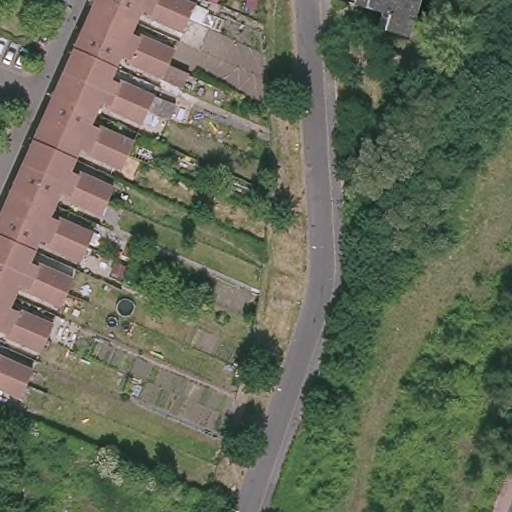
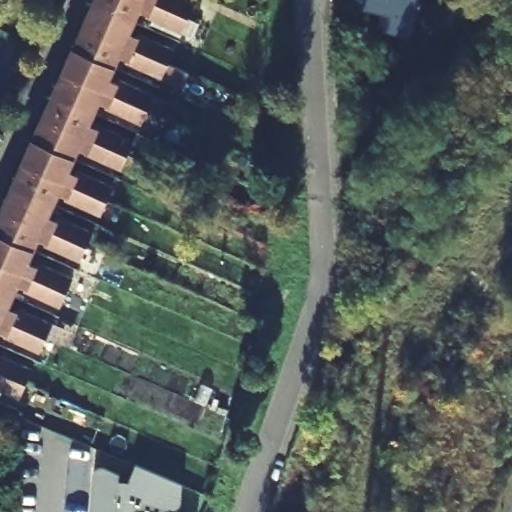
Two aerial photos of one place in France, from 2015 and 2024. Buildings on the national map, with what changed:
unchanged [(90,4),(91,0),(142,0),(183,18),(177,32),(144,17),(146,12),(137,8),(131,22),(90,4)]
unchanged [(189,4),(183,18),(142,0),(180,0),(189,4)]
unchanged [(409,39),(394,35),(386,33),(390,18),(357,7),(358,0),(421,0),(409,39)]
unchanged [(125,35),(133,39),(135,35),(169,50),(164,63),(80,26),(90,4),(131,22),(125,35)]
unchanged [(69,50),(80,26),(164,63),(158,77),(124,62),(125,58),(117,54),(111,68),(69,50)]
unchanged [(104,82),(113,86),(115,82),(149,96),(143,111),(59,74),(69,50),(111,68),(104,82)]
unchanged [(49,95),(59,74),(143,111),(137,123),(103,108),(105,104),(96,101),(91,114),(49,95)]
unchanged [(85,128),(93,132),(95,127),(129,142),(123,156),(38,119),(49,95),(91,114),(85,128)]
unchanged [(29,142),(38,119),(123,156),(117,169),(83,154),(85,150),(77,146),(71,160),(29,142)]
unchanged [(65,174),(73,177),(75,172),(109,187),(103,202),(18,165),(29,142),(71,160),(65,174)]
unchanged [(9,187),(18,165),(103,202),(97,216),(63,200),(64,196),(56,192),(51,205),(9,187)]
unchanged [(45,219),(53,222),(55,217),(89,234),(83,247),(0,210),(0,206),(9,187),(51,205),(45,219)]
unchanged [(0,237),(0,210),(83,247),(78,261),(42,246),(45,241),(37,238),(31,251),(0,237)]
unchanged [(24,265),(33,268),(34,265),(69,280),(63,293),(0,265),(0,237),(31,251),(24,265)]
unchanged [(0,293),(0,265),(63,293),(57,307),(22,292),(24,287),(17,284),(11,298),(0,293)]
unchanged [(5,312),(13,315),(14,311),(48,325),(43,337),(0,319),(0,293),(11,298),(5,312)]
unchanged [(43,337),(36,352),(3,337),(5,333),(0,331),(0,319),(43,337)]
unchanged [(28,370),(22,384),(0,375),(0,358),(28,370)]
unchanged [(15,399),(0,392),(0,375),(22,384),(15,399)]
new [(95,471),(99,468),(103,467),(106,467),(121,474),(121,480),(129,481),(137,464),(184,482),(183,502),(182,504),(179,507),(175,509),(174,512),(92,512),(94,474),(95,471)]

